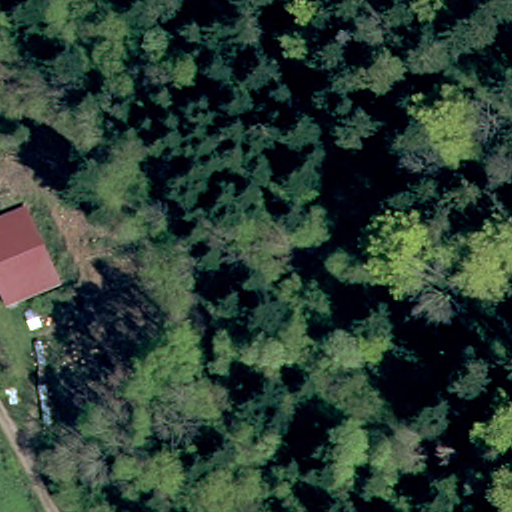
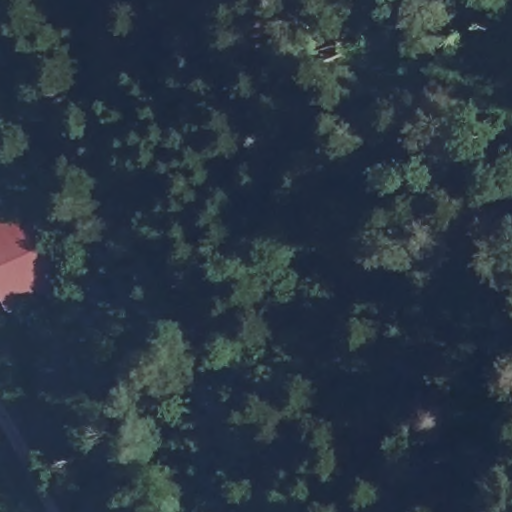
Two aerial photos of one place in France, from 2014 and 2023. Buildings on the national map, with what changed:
unchanged [(13,206),(47,290),(10,309),(0,287),(0,214),(13,206)]

